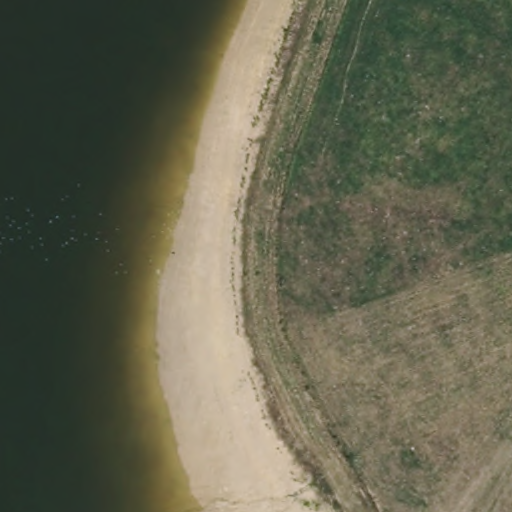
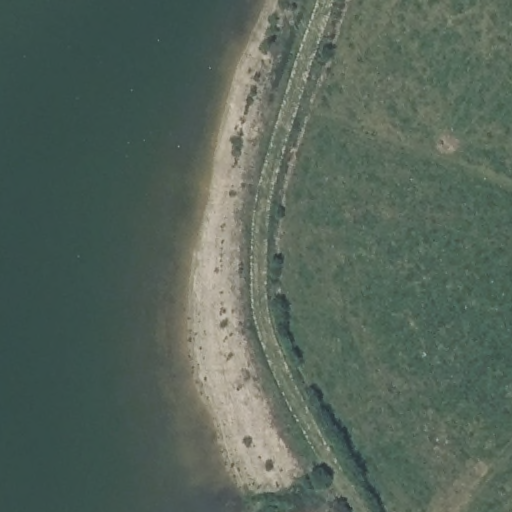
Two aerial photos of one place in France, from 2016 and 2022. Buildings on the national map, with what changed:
[]

